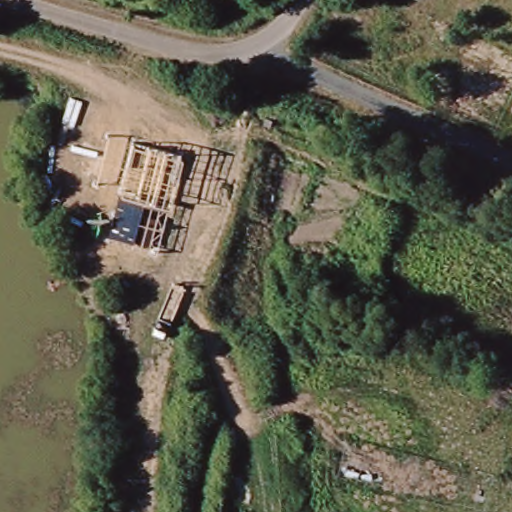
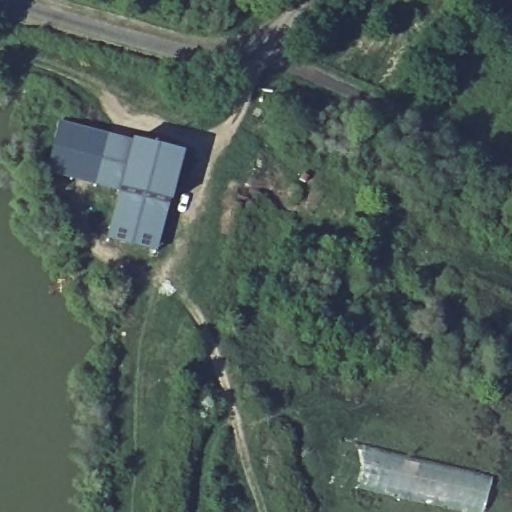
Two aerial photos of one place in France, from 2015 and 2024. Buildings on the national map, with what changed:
new [(50,126),(119,140),(104,192),(37,181),(50,126)]
new [(119,140),(168,154),(154,206),(104,192),(119,140)]
new [(104,192),(154,206),(140,255),(91,240),(104,192)]
new [(492,476),(483,512),(472,512),(355,485),(361,445),(492,476)]

